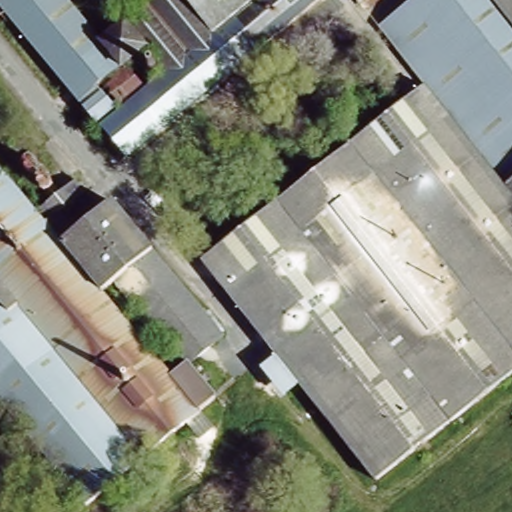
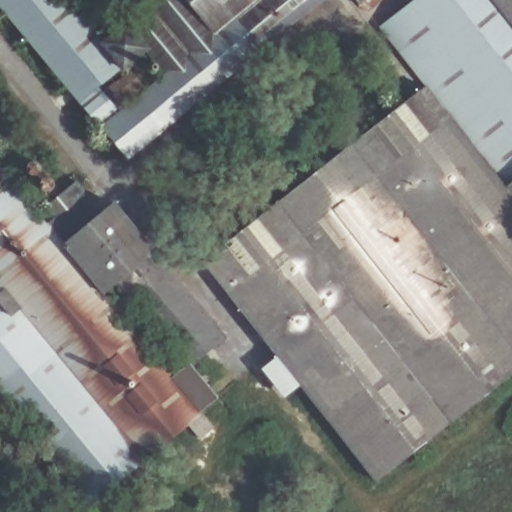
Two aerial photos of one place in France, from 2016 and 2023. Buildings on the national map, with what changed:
unchanged [(115,157),(0,12),(0,0),(58,0),(91,42),(144,0),(313,0),(115,157)]
unchanged [(366,3),(364,0),(370,0),(366,3)]
unchanged [(421,0),(512,0),(512,186),(386,28),(421,0)]
unchanged [(512,193),(512,366),(374,477),(201,262),(430,91),(512,193)]
unchanged [(36,210),(76,180),(103,213),(115,199),(226,332),(187,363),(221,396),(85,505),(0,404),(0,166),(36,210)]

